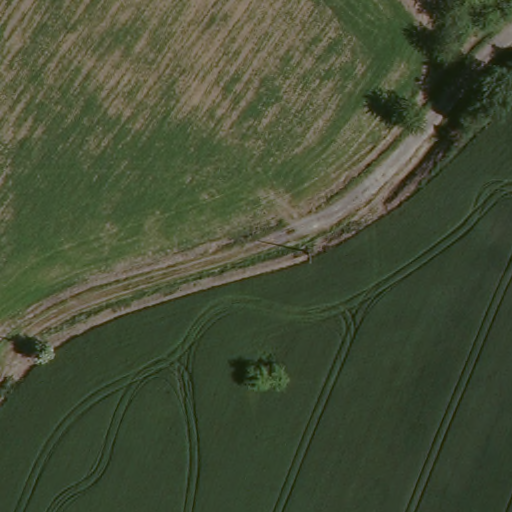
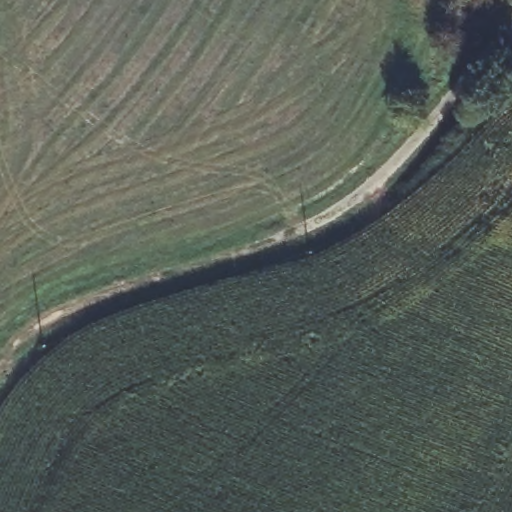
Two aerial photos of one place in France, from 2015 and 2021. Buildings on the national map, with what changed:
[]

